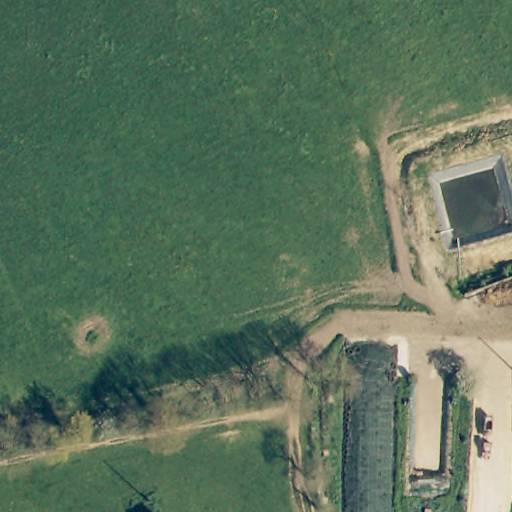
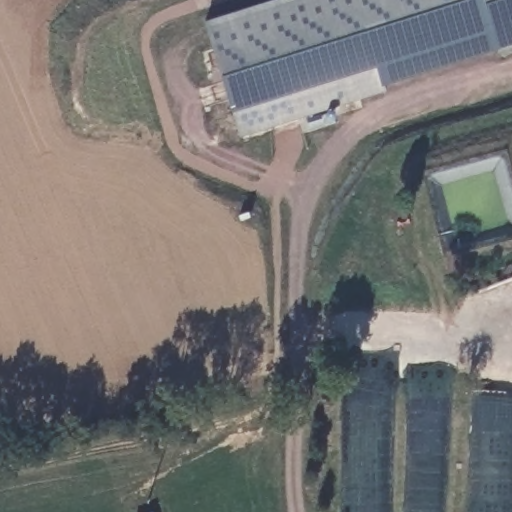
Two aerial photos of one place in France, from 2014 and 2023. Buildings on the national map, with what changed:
new [(385,88),(386,92),(240,138),(205,23),(277,0),(512,0),(512,47),(385,88)]

